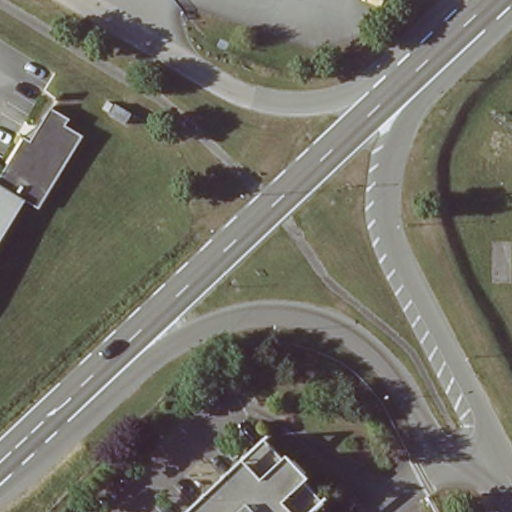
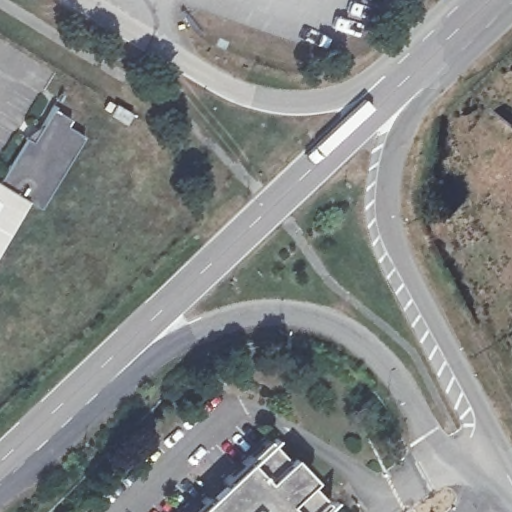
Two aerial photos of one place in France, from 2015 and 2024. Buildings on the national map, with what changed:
unchanged [(110,115),(116,105),(132,114),(126,125),(110,115)]
unchanged [(0,237),(0,188),(22,201),(0,237)]
unchanged [(287,460),(295,460),(307,473),(308,481),(328,503),(318,512),(189,512),(205,496),(213,496),(225,485),(225,478),(267,438),(287,460)]

